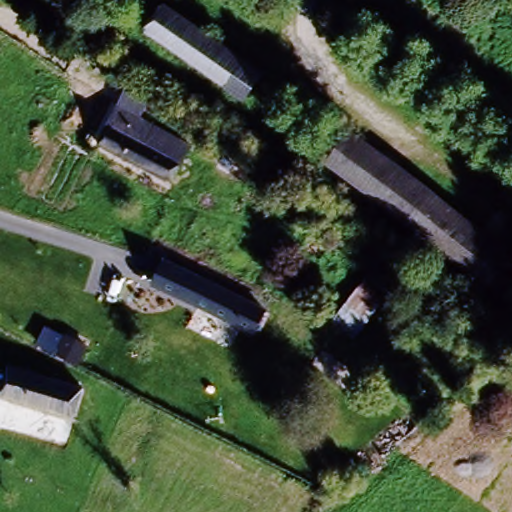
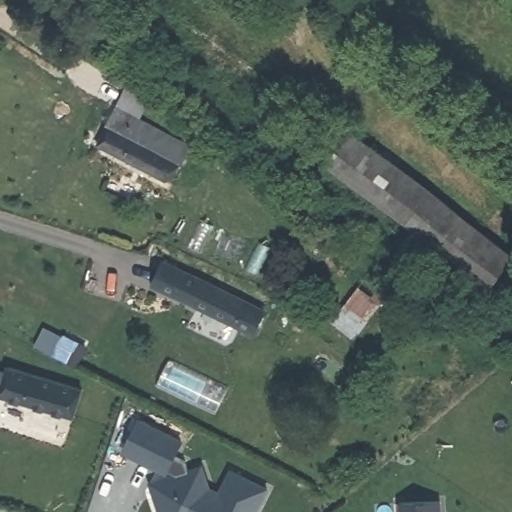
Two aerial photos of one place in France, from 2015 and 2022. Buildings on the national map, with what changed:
unchanged [(185,61),(153,36),(172,10),(265,74),(242,108),(180,71),(185,61)]
unchanged [(162,183),(94,149),(122,95),(144,106),(134,125),(187,153),(180,167),(172,164),(162,183)]
unchanged [(512,252),(512,255),(490,285),(327,160),(350,130),(512,252)]
unchanged [(253,333),(158,288),(170,265),(263,311),(253,333)]
unchanged [(12,367),(83,389),(75,417),(0,396),(0,369),(10,372),(12,367)]
new [(168,474),(167,477),(125,455),(140,424),(182,445),(175,460),(186,465),(190,475),(203,471),(210,492),(221,498),(232,475),(268,493),(259,512),(160,512),(157,500),(152,488),(178,479),(168,474)]
new [(440,500),(441,512),(400,512),(400,502),(440,500)]

